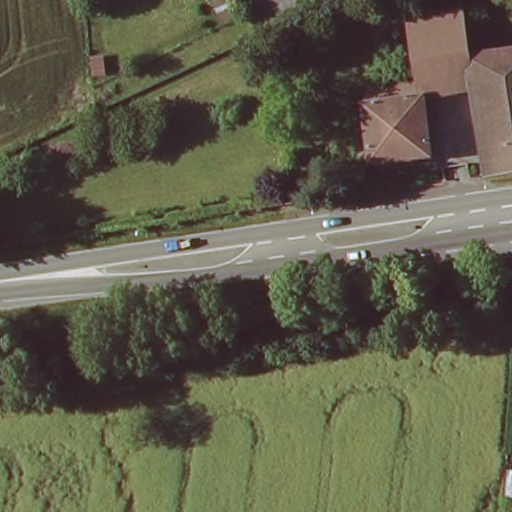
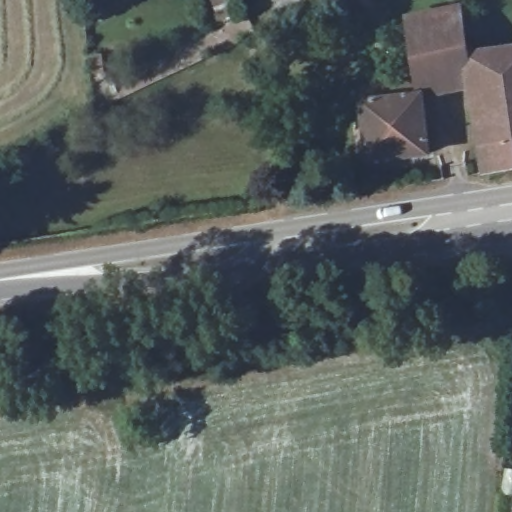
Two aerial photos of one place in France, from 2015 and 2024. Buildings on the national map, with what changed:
unchanged [(471,92),(421,101),(420,96),(410,21),(455,14),(468,70),(471,92)]
unchanged [(512,178),(486,182),(471,92),(468,70),(512,62),(512,178)]
unchanged [(421,101),(432,158),(367,169),(364,105),(420,96),(421,101)]

